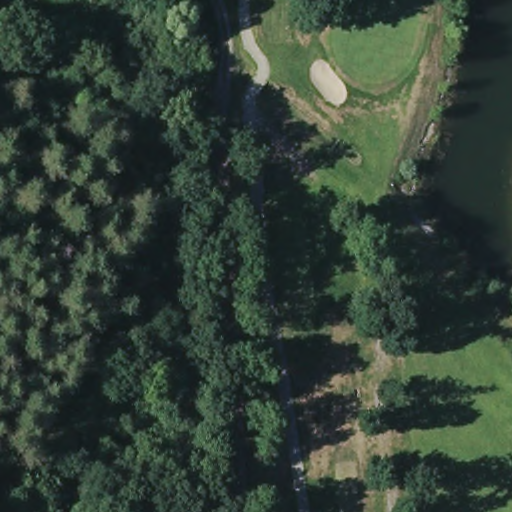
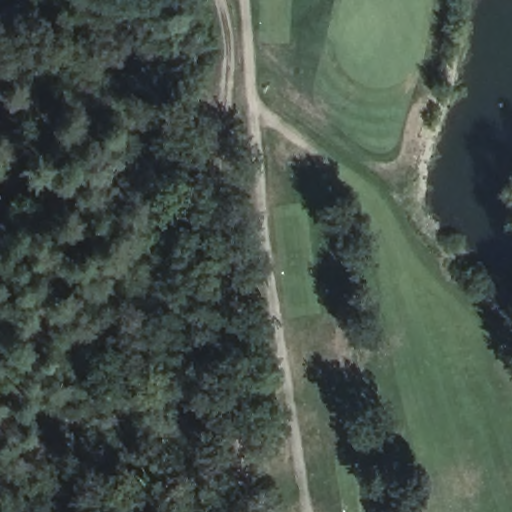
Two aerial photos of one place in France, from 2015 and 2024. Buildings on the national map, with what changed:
unchanged [(150,382),(210,362),(200,442),(160,432),(150,382)]

